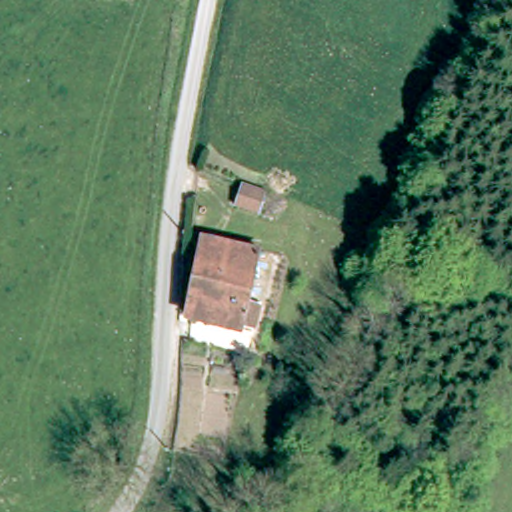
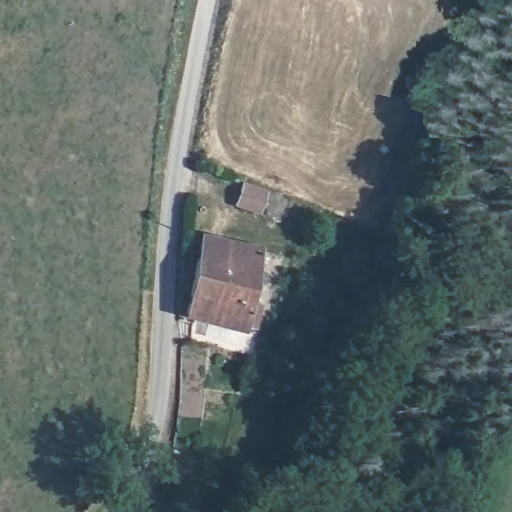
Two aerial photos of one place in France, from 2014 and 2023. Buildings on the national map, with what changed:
unchanged [(242,210),(249,186),(271,192),(264,216),(242,210)]
unchanged [(239,326),(184,313),(203,235),(259,249),(246,299),(258,301),(256,312),(252,326),(248,325),(240,323),(239,326)]

